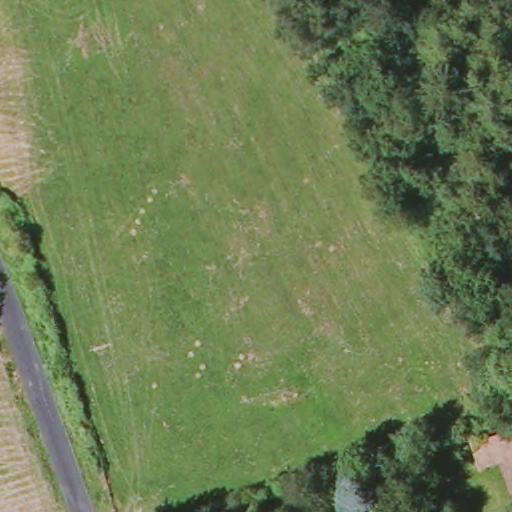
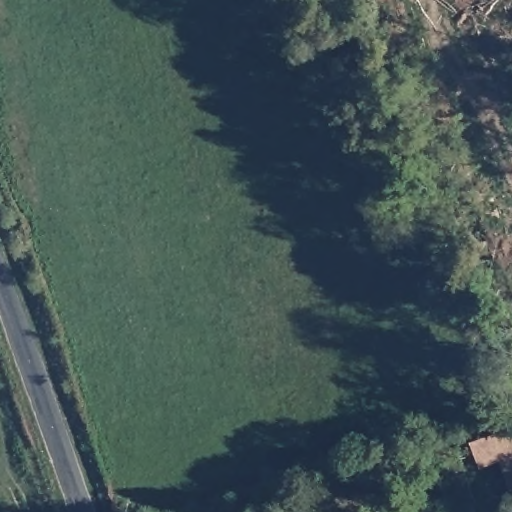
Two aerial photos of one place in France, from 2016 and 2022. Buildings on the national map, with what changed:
unchanged [(512,427),(512,504),(508,506),(495,465),(476,470),(470,442),(512,427)]

